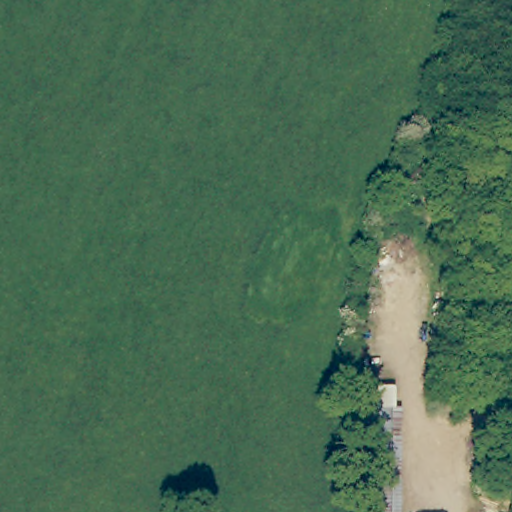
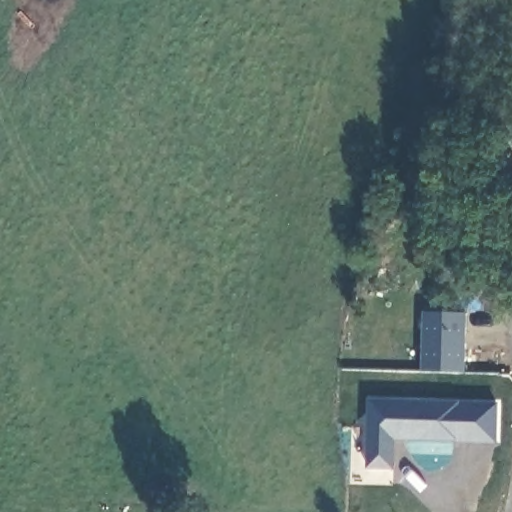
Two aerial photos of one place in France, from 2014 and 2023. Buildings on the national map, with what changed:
new [(422,371),(423,311),(468,312),(467,373),(422,371)]
new [(498,443),(395,440),(395,470),(366,469),(367,399),(500,401),(498,443)]
demolished [(365,512),(367,408),(398,407),(398,512),(365,512)]

